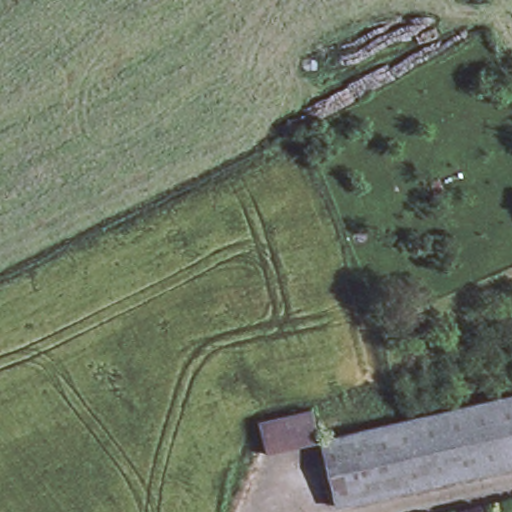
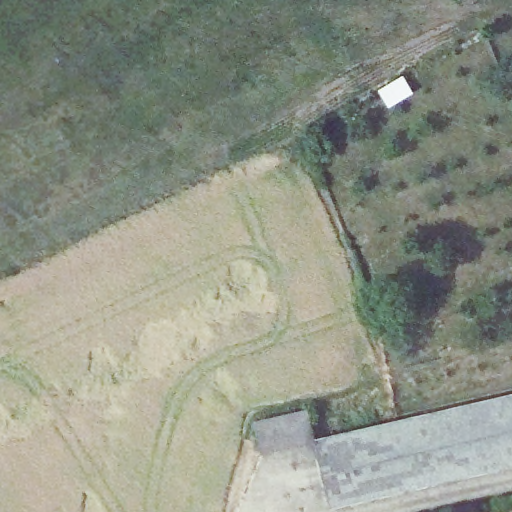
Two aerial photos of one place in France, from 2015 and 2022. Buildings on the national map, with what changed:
unchanged [(318,439),(400,420),(512,394),(512,464),(332,505),(318,439)]
unchanged [(259,422),(311,410),(318,439),(265,452),(259,422)]

